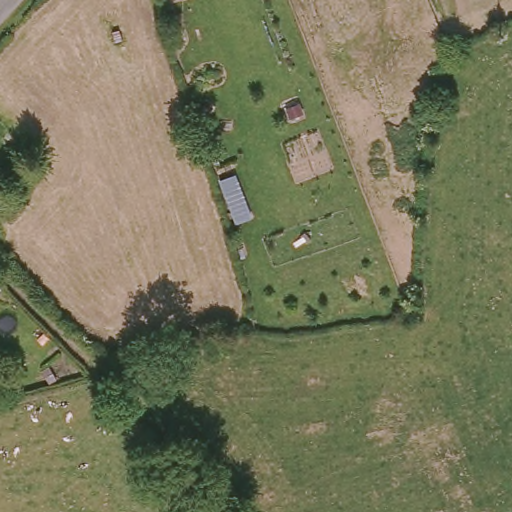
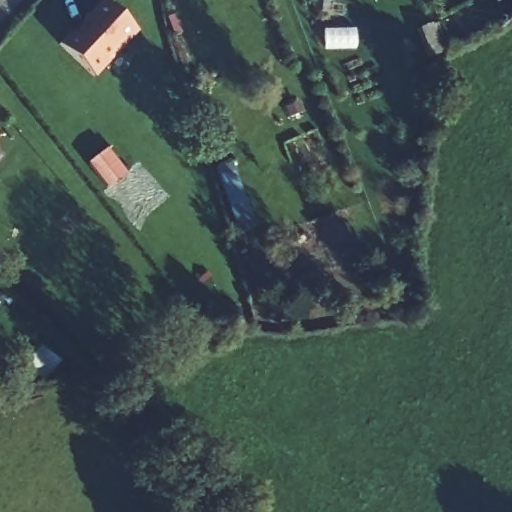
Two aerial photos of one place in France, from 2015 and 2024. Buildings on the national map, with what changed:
new [(77,36),(85,27),(80,22),(101,0),(103,0),(138,33),(95,78),(60,44),(72,31),(77,36)]

